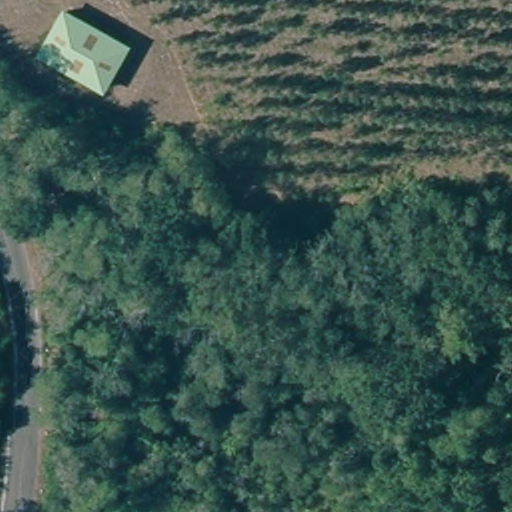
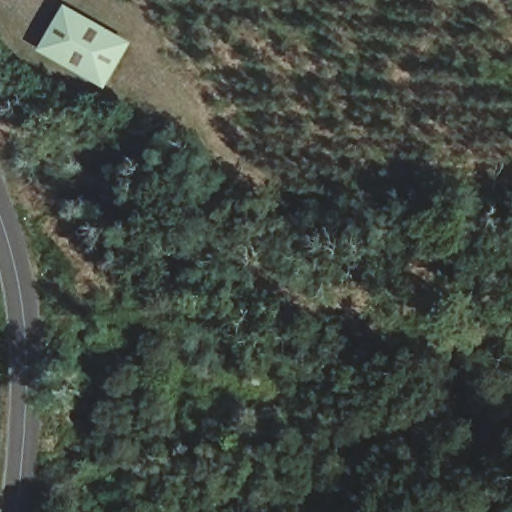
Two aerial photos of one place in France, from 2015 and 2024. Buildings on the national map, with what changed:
unchanged [(66,7),(135,41),(111,86),(41,54),(66,7)]

